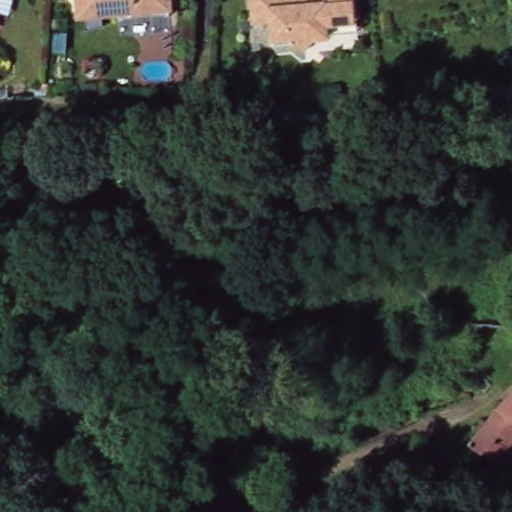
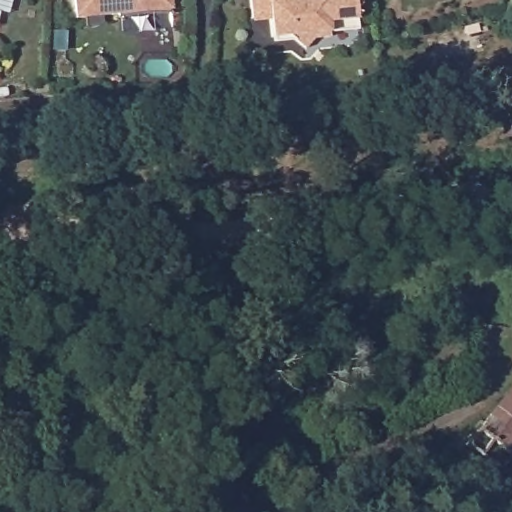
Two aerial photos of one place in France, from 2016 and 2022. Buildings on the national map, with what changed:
unchanged [(176,7),(83,14),(82,0),(176,0),(176,7)]
unchanged [(362,27),(332,30),(311,47),(295,35),(276,38),(273,18),(255,20),(253,0),(359,0),(362,27)]
unchanged [(493,405),(502,395),(512,383),(512,446),(505,453),(508,458),(496,473),(468,448),(493,406),(493,405)]

